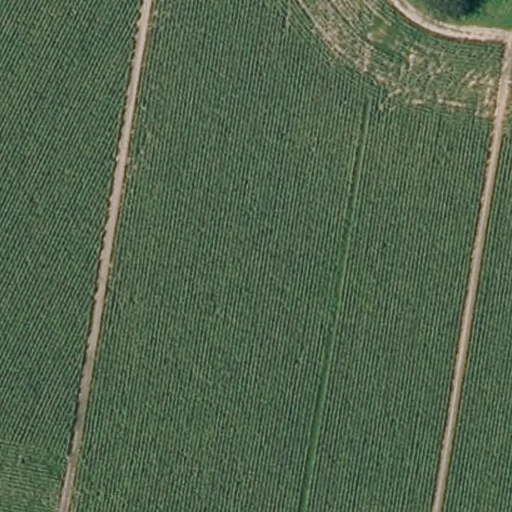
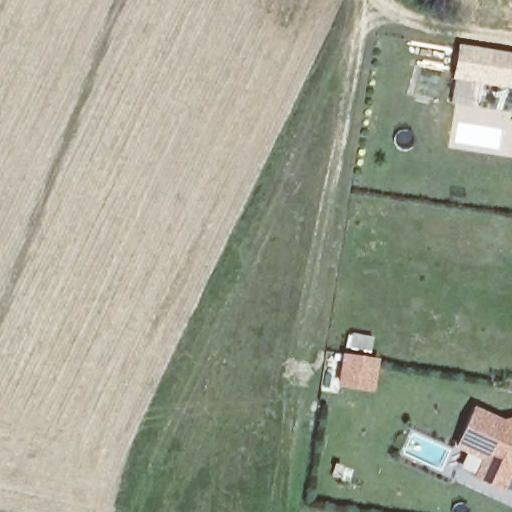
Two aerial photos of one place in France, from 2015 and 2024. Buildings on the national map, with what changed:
new [(457,44),(512,53),(512,74),(509,89),(451,79),(457,44)]
new [(378,359),(373,392),(335,388),(340,353),(378,359)]
new [(503,423),(503,426),(512,430),(512,472),(509,471),(501,489),(475,477),(483,459),(456,446),(473,410),(503,423)]

